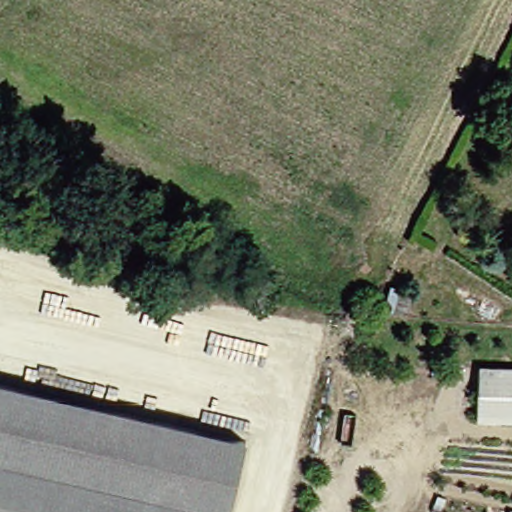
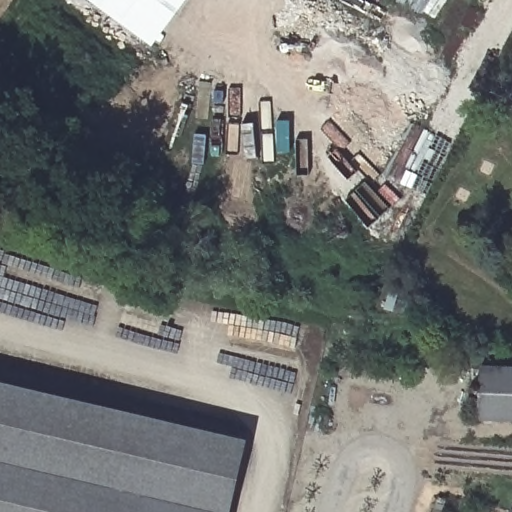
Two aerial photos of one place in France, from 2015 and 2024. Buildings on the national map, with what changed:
new [(177,14),(154,47),(90,0),(158,0),(177,14)]
new [(177,14),(158,0),(187,0),(177,14)]
unchanged [(512,363),(512,416),(473,414),(476,361),(512,363)]
unchanged [(225,512),(0,512),(0,379),(242,436),(225,512)]
unchanged [(512,509),(512,512),(499,512),(501,505),(512,509)]

